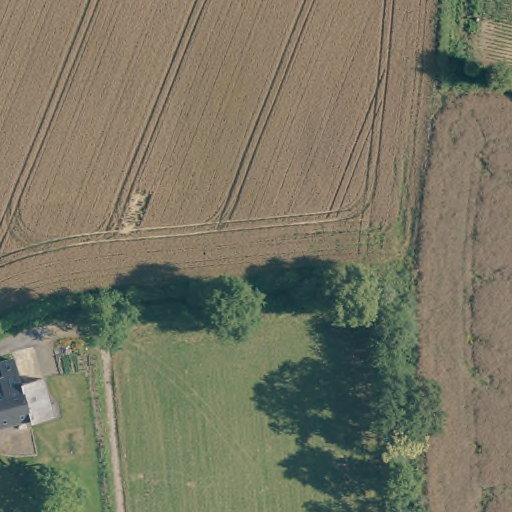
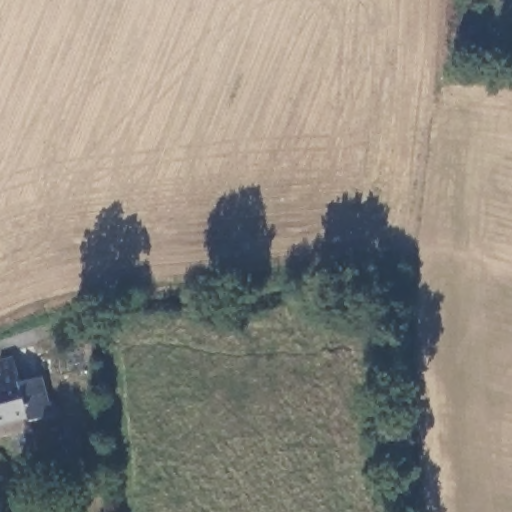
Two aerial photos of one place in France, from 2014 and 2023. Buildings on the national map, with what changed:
unchanged [(8,353),(11,364),(14,376),(15,378),(35,372),(43,399),(48,397),(51,409),(24,416),(23,411),(0,418),(0,355),(7,353),(8,353)]

